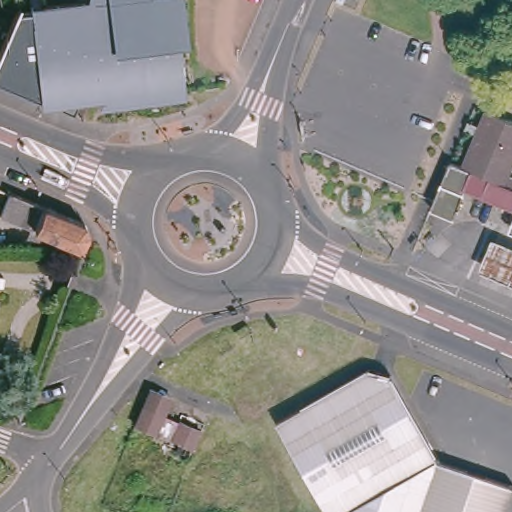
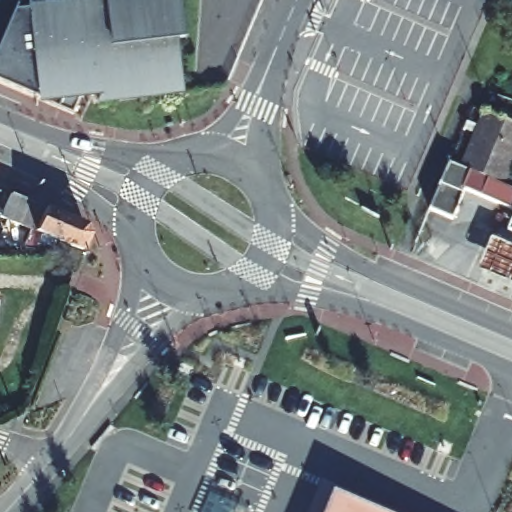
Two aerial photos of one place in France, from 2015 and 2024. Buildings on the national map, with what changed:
unchanged [(63,103),(5,79),(0,77),(0,45),(16,8),(28,7),(28,4),(50,0),(182,0),(181,28),(182,60),(185,88),(105,97),(111,81),(98,82),(94,89),(82,90),(75,104),(73,108),(63,103)]
unchanged [(463,166),(462,165),(484,109),(486,109),(512,119),(512,154),(501,182),(493,179),(463,166)]
unchanged [(465,187),(453,217),(428,207),(432,201),(448,159),(457,163),(462,165),(463,166),(493,179),(501,182),(508,185),(512,187),(512,207),(465,187)]
unchanged [(85,228),(78,244),(57,237),(57,241),(20,243),(26,222),(0,212),(0,206),(7,187),(81,217),(85,228)]
unchanged [(510,223),(510,219),(510,215),(512,211),(512,227),(510,223)]
unchanged [(475,269),(490,236),(512,244),(512,284),(475,269)]
demolished [(290,457),(272,428),(273,427),(360,373),(382,379),(434,461),(510,483),(502,512),(324,512),(290,457)]
new [(383,512),(327,512),(335,491),(383,512)]

